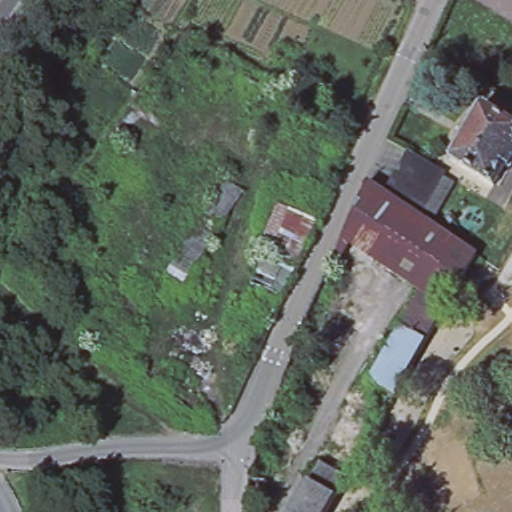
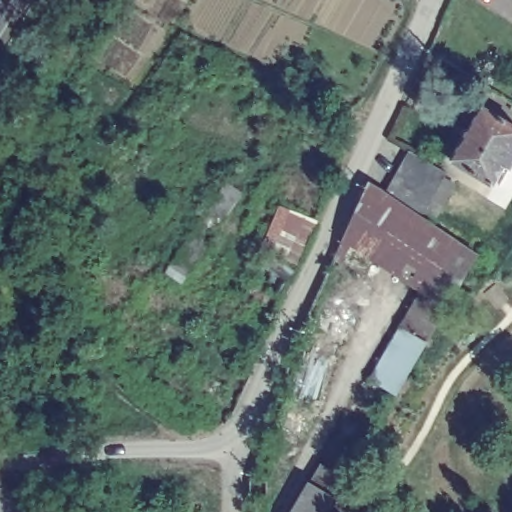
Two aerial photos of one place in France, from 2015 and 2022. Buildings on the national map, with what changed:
unchanged [(512,122),(512,164),(512,165),(506,162),(495,182),(452,155),(482,105),(512,122)]
unchanged [(385,195),(412,152),(449,174),(422,219),(385,195)]
unchanged [(235,188),(183,280),(168,271),(220,180),(235,188)]
unchanged [(369,185),(385,195),(422,219),(479,256),(464,282),(449,307),(423,292),(343,242),(369,185)]
unchanged [(245,288),(280,205),(314,221),(282,295),(245,288)]
unchanged [(428,342),(428,343),(402,328),(423,292),(449,307),(428,342)]
unchanged [(372,380),(402,328),(428,343),(411,373),(398,396),(372,380)]
unchanged [(349,480),(338,498),(330,512),(295,512),(312,483),(323,465),(349,480)]
unchanged [(251,482),(266,482),(267,502),(250,501),(251,482)]

